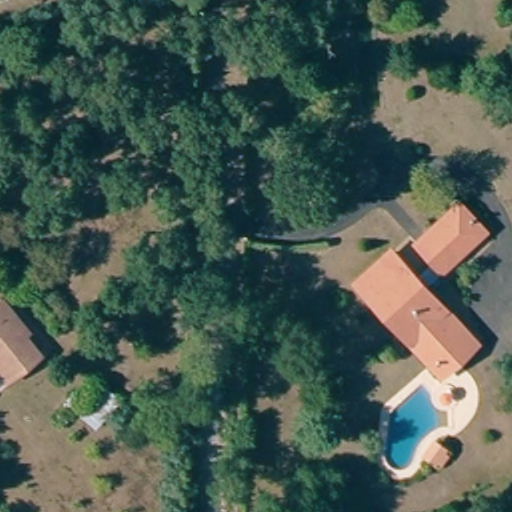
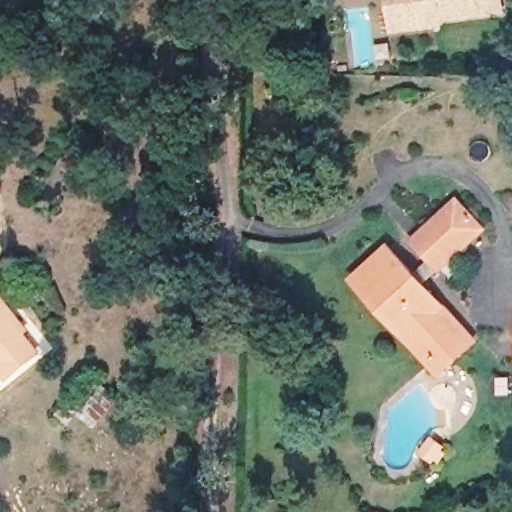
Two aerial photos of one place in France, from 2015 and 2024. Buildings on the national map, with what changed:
new [(392,34),(388,0),(506,0),(508,16),(437,25),(438,30),(392,34)]
unchanged [(455,204),(481,232),(443,267),(417,240),(455,204)]
unchanged [(350,279),(386,248),(468,336),(433,370),(423,359),(429,353),(402,325),(397,331),(383,316),(388,311),(364,287),(360,291),(350,279)]
unchanged [(0,384),(0,301),(7,295),(18,310),(34,329),(28,336),(41,353),(13,376),(2,385),(0,384)]
demolished [(429,410),(421,402),(419,395),(424,387),(431,381),(433,380),(445,381),(452,389),(450,401),(442,408),(438,409),(429,410)]
unchanged [(439,456),(430,467),(422,460),(429,451),(439,456)]

